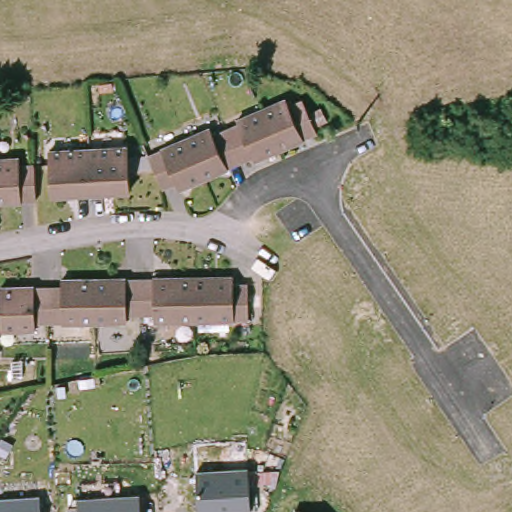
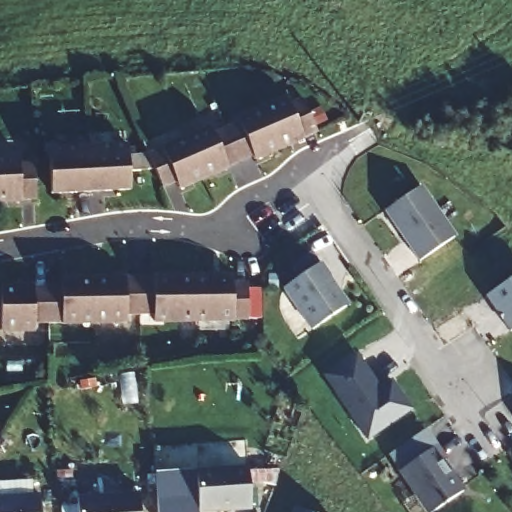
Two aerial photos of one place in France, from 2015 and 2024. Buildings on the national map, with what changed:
unchanged [(211,131),(213,135),(236,126),(234,121),(274,106),(277,110),(299,102),(314,136),(253,162),(251,160),(178,190),(175,185),(160,191),(146,158),(211,131)]
unchanged [(128,146),(128,189),(51,192),(51,148),(128,146)]
new [(128,158),(146,158),(153,174),(128,175),(128,158)]
unchanged [(18,161),(18,167),(33,166),(38,202),(0,205),(0,163),(18,161)]
new [(456,230),(421,255),(388,208),(419,183),(456,230)]
new [(346,304),(315,326),(289,284),(321,263),(346,304)]
unchanged [(59,287),(60,277),(231,277),(231,285),(247,286),(247,324),(151,324),(151,318),(124,318),(124,325),(32,325),(31,331),(0,331),(0,287),(59,287)]
new [(512,330),(509,332),(486,297),(506,284),(512,279),(512,330)]
new [(323,376),(356,353),(380,387),(392,381),(413,410),(368,441),(323,376)]
new [(464,487),(432,509),(407,467),(438,446),(464,487)]
unchanged [(229,512),(199,512),(196,469),(248,466),(251,510),(229,512)]
new [(196,469),(199,512),(158,512),(154,472),(196,469)]
unchanged [(78,512),(77,497),(139,492),(140,512),(78,512)]
unchanged [(0,512),(0,497),(40,494),(41,512),(0,512)]
unchanged [(293,512),(294,508),(303,512),(293,512)]

